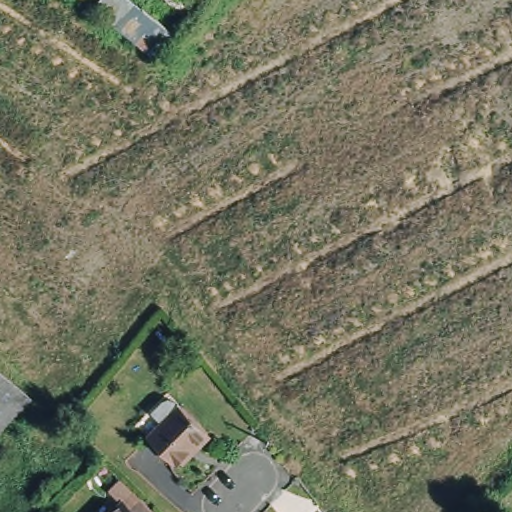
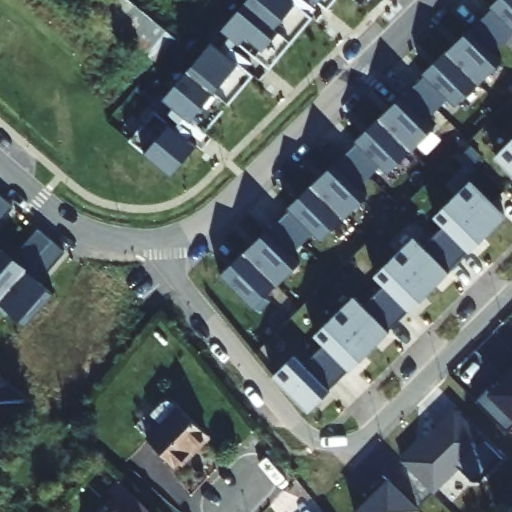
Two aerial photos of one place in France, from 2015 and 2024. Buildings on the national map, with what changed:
new [(132,43),(136,38),(95,7),(101,0),(132,0),(171,32),(151,59),(132,43)]
new [(149,106),(160,94),(166,98),(213,41),(208,38),(218,25),(223,29),(248,0),(293,0),(314,17),(269,69),(231,36),(221,46),(254,74),(204,133),(172,105),(163,116),(196,144),(170,174),(130,140),(154,111),(149,106)]
new [(317,0),(335,0),(328,9),(317,0)]
new [(512,0),(512,33),(504,41),(481,19),(492,8),(492,6),(498,0),(512,0)]
new [(504,41),(493,52),(499,59),(477,81),(447,51),(469,28),(471,29),(481,19),(504,41)]
new [(477,81),(453,104),(447,98),(436,109),(413,86),(424,74),(447,51),(477,81)]
new [(436,109),(425,119),(432,126),(409,148),(379,118),(402,95),(403,96),(413,86),(436,109)]
new [(379,118),(409,148),(385,172),(379,165),(369,175),(346,153),(357,141),(356,141),(379,118)]
new [(497,155),(512,139),(512,170),(497,155)]
new [(336,163),(346,153),(369,175),(358,186),(364,193),(341,215),(311,185),(334,162),(336,163)]
new [(506,215),(309,412),(274,376),(296,354),(306,363),(324,343),(314,333),(354,294),(364,304),(384,283),(375,275),(416,236),(424,244),(444,224),(435,215),(472,180),(506,215)]
new [(341,215),(317,239),(311,232),(301,242),(279,220),(289,209),(289,208),(311,185),(341,215)]
new [(13,206),(0,221),(0,194),(1,195),(13,206)]
new [(268,230),(279,220),(301,242),(289,253),(296,260),(274,282),(243,252),(266,229),(268,230)]
new [(19,253),(40,229),(53,240),(65,250),(44,275),(31,264),(19,253)]
new [(0,300),(0,248),(26,270),(0,300)]
new [(274,282),(261,295),(267,301),(256,311),(221,275),(243,252),(274,282)]
new [(0,309),(0,300),(26,270),(53,294),(28,323),(12,309),(6,315),(0,309)]
unchanged [(32,393),(0,425),(0,366),(31,392),(32,393)]
new [(509,431),(479,400),(489,391),(512,367),(512,428),(509,431)]
unchanged [(183,468),(156,438),(169,424),(158,414),(160,412),(170,403),(176,402),(181,403),(187,407),(214,437),(196,454),(183,468)]
new [(504,457),(480,480),(472,480),(459,467),(435,493),(400,459),(457,408),(504,457)]
new [(419,509),(415,512),(354,512),(388,477),(419,509)]
unchanged [(123,509),(133,498),(147,512),(126,512),(123,509)]

